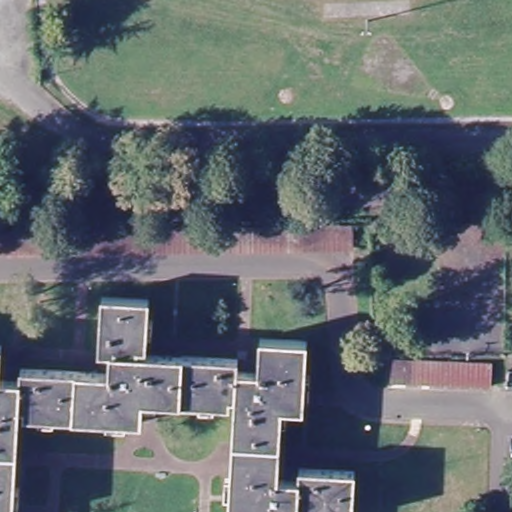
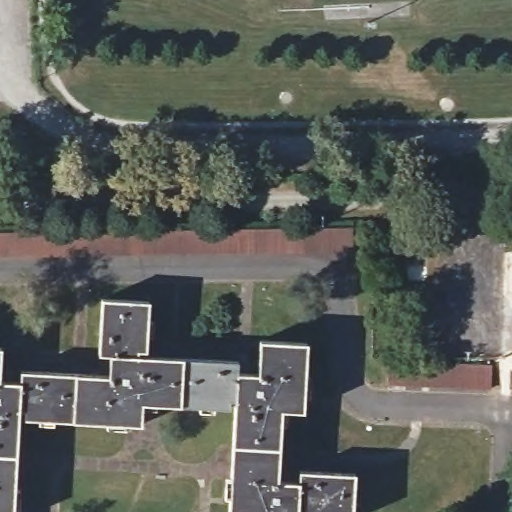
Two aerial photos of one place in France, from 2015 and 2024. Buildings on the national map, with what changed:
unchanged [(356,230),(356,250),(306,252),(306,232),(356,230)]
unchanged [(306,252),(130,257),(130,235),(306,232),(306,252)]
unchanged [(130,257),(82,258),(81,237),(130,235),(130,257)]
unchanged [(81,237),(82,258),(0,260),(0,238),(81,237)]
unchanged [(22,384),(23,373),(112,376),(114,354),(100,354),(104,300),(152,303),(149,351),(144,351),(142,357),(243,361),(242,373),(265,374),(266,343),(312,345),(308,412),(285,410),(280,479),(303,481),(303,471),(358,473),(356,512),(308,512),(308,508),(301,508),(301,512),(233,512),(240,399),(232,399),(232,408),(147,404),(145,423),(28,417),(29,409),(20,408),(14,512),(0,512),(0,383),(22,384)]
unchanged [(3,349),(0,383),(0,349),(3,349)]
unchanged [(492,391),(388,389),(390,362),(492,364),(492,391)]

